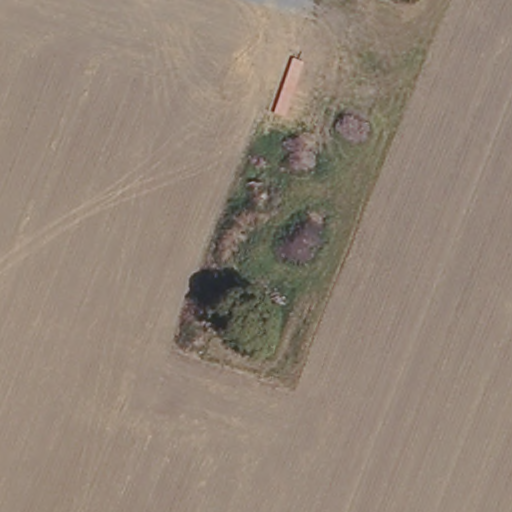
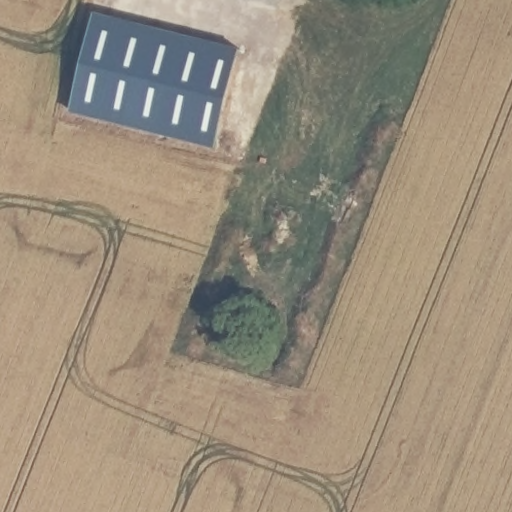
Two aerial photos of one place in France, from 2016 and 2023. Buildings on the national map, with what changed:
new [(230,63),(209,145),(73,107),(93,26),(230,63)]

